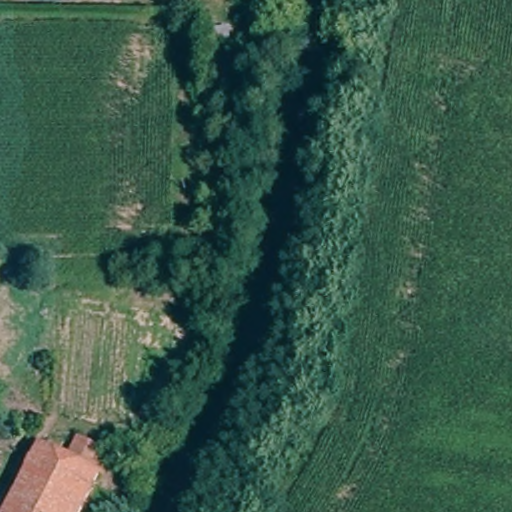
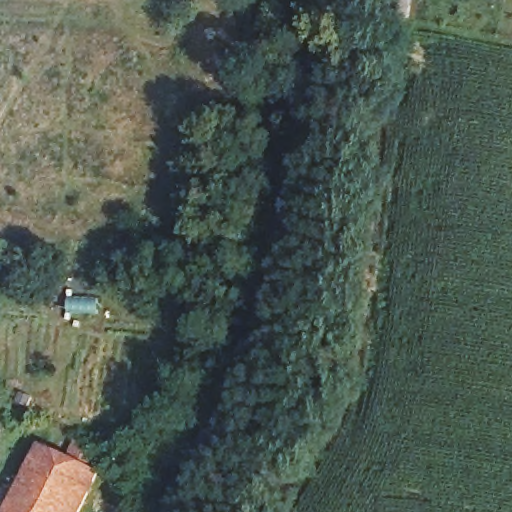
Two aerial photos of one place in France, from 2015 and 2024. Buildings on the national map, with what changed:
unchanged [(90,464),(98,471),(80,512),(8,512),(40,442),(69,454),(78,436),(99,446),(94,457),(90,464)]

